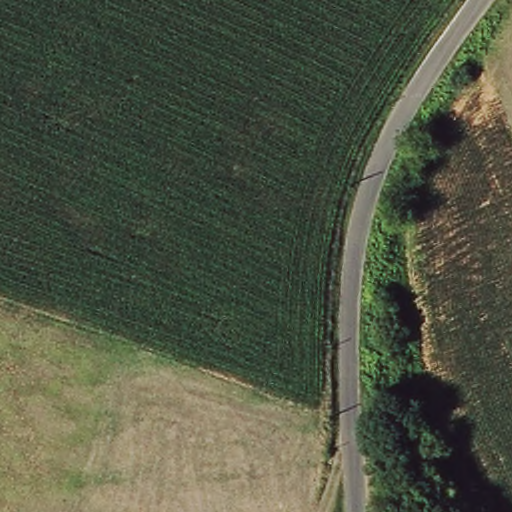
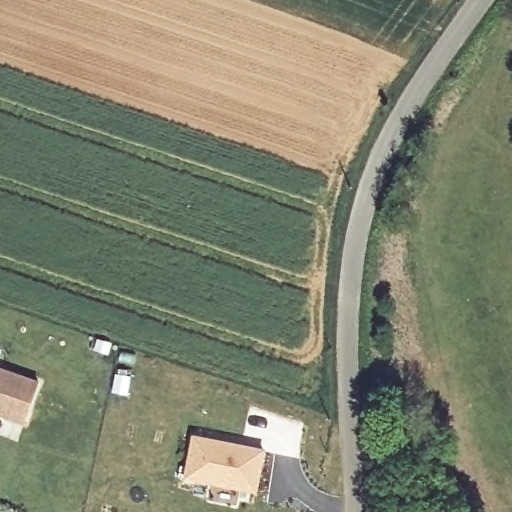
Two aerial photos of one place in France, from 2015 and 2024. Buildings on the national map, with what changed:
new [(40,380),(24,425),(0,417),(0,367),(40,380)]
new [(266,449),(257,493),(183,479),(193,434),(266,449)]

